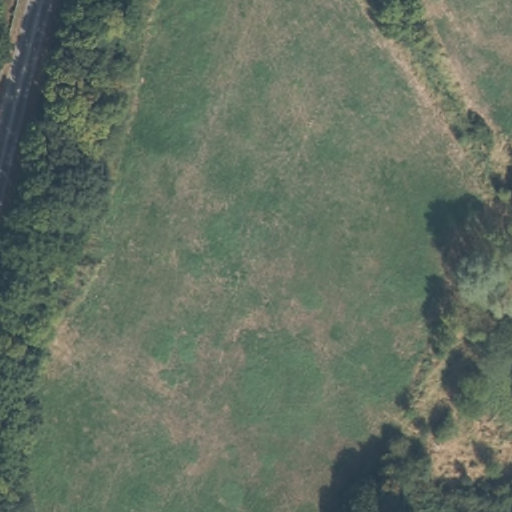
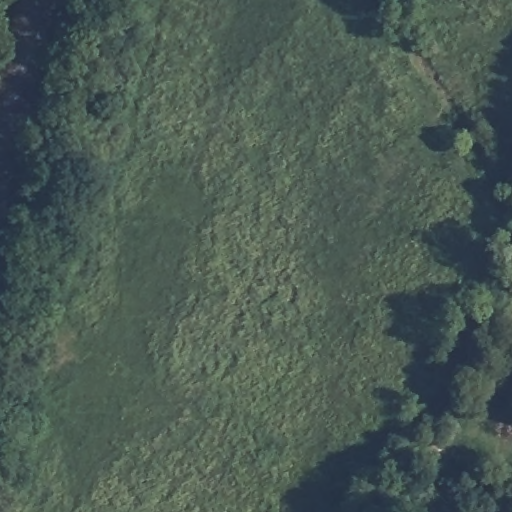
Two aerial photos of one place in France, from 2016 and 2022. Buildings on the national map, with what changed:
[]

